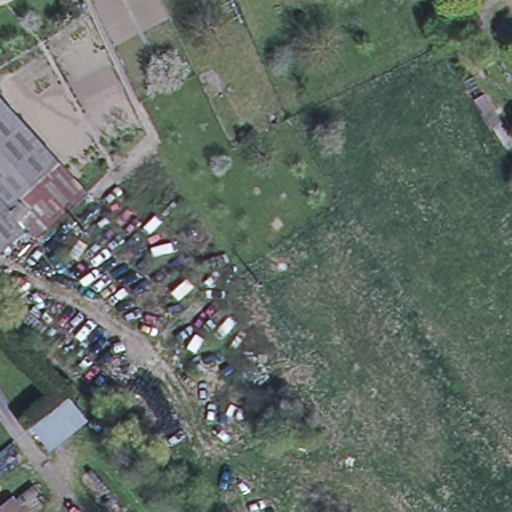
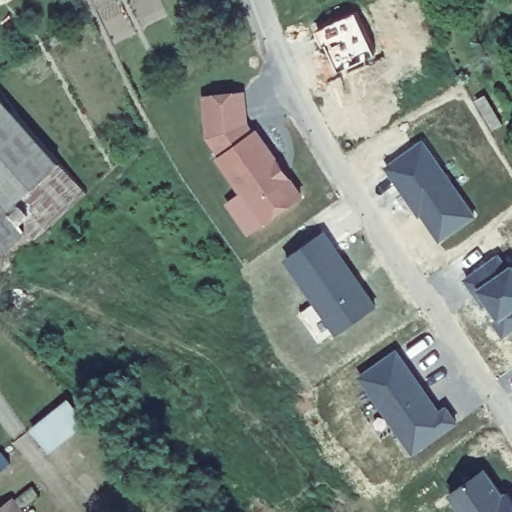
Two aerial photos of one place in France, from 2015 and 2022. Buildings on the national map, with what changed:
new [(353,19),(371,53),(335,69),(325,49),(321,50),(315,35),(353,19)]
unchanged [(20,115),(87,192),(0,108),(0,86),(20,115)]
new [(245,121),(252,132),(256,130),(277,160),(276,166),(285,180),(288,177),(302,197),(250,233),(225,201),(240,191),(217,157),(219,156),(210,143),(206,134),(205,95),(242,92),(245,121)]
unchanged [(87,192),(78,200),(42,237),(27,227),(0,249),(0,108),(87,192)]
new [(421,141),(475,219),(437,246),(383,170),(421,141)]
new [(375,307),(334,337),(282,262),(323,231),(375,307)]
new [(507,270),(510,267),(512,270),(512,332),(501,339),(492,326),(497,322),(484,305),(480,307),(462,280),(497,256),(507,270)]
new [(437,413),(445,408),(457,426),(410,459),(357,378),(395,351),(437,413)]
unchanged [(87,427),(47,458),(27,432),(65,402),(87,427)]
new [(508,487),(512,491),(512,512),(459,512),(445,492),(487,464),(504,489),(508,487)]
unchanged [(14,497),(21,507),(26,512),(0,512),(0,509),(14,497)]

